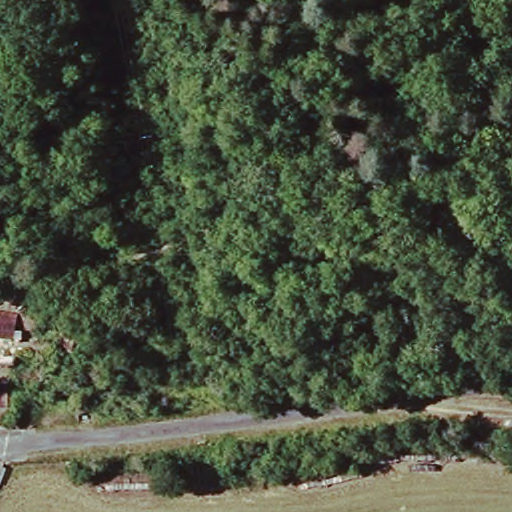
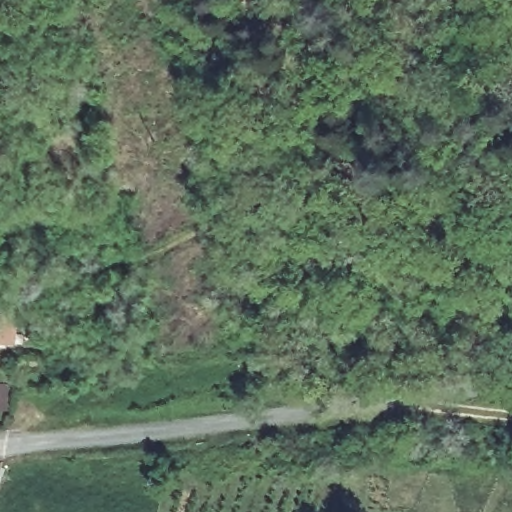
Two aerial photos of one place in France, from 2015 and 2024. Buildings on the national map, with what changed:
unchanged [(10,338),(18,338),(18,347),(0,347),(0,308),(9,307),(10,338)]
unchanged [(75,352),(45,348),(48,322),(76,328),(75,352)]
unchanged [(0,398),(0,374),(3,373),(4,398),(0,398)]

